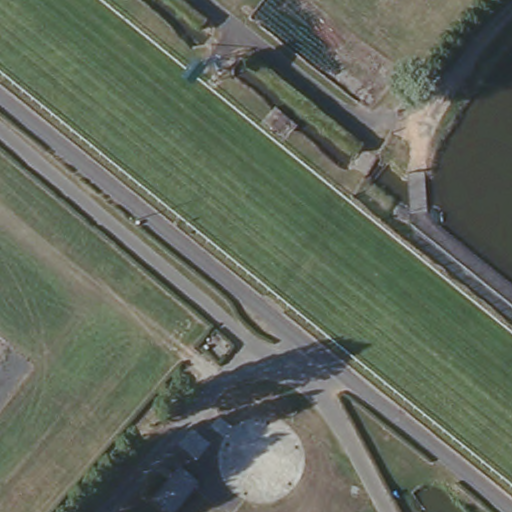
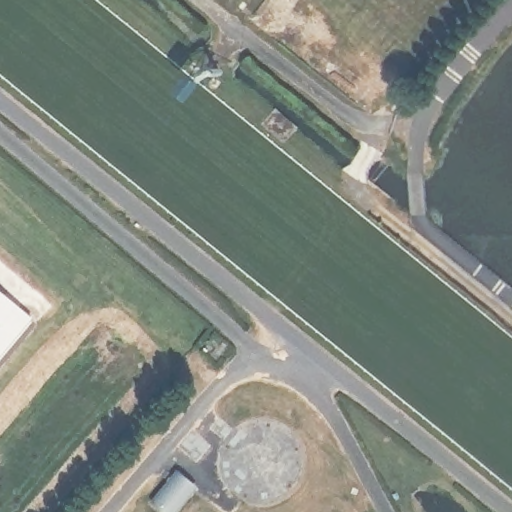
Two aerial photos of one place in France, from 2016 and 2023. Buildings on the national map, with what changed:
new [(38,313),(0,359),(0,281),(38,313)]

